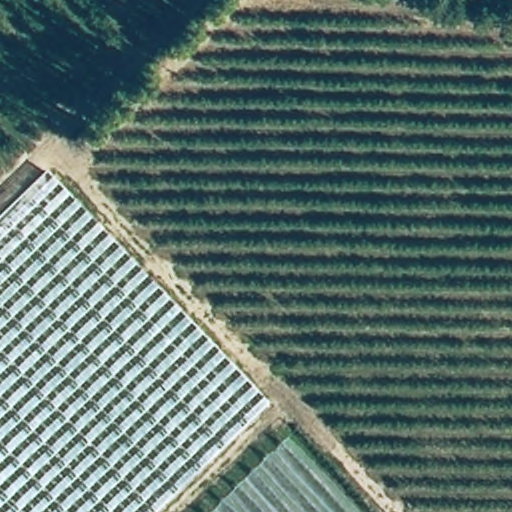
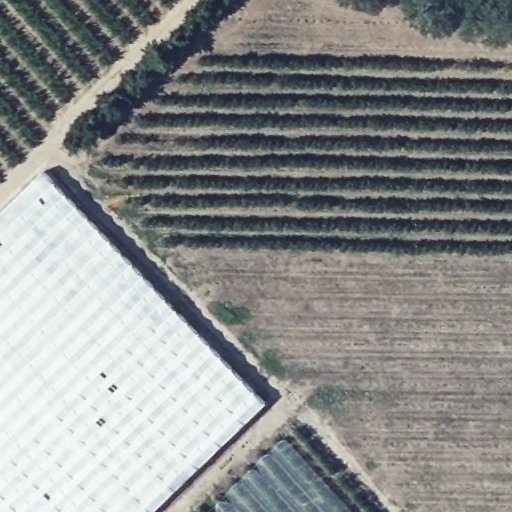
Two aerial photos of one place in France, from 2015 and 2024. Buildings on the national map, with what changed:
unchanged [(268,402),(152,512),(0,512),(0,218),(48,171),(268,402)]

